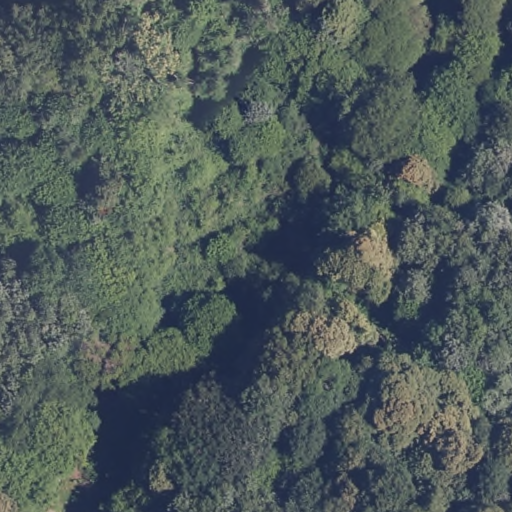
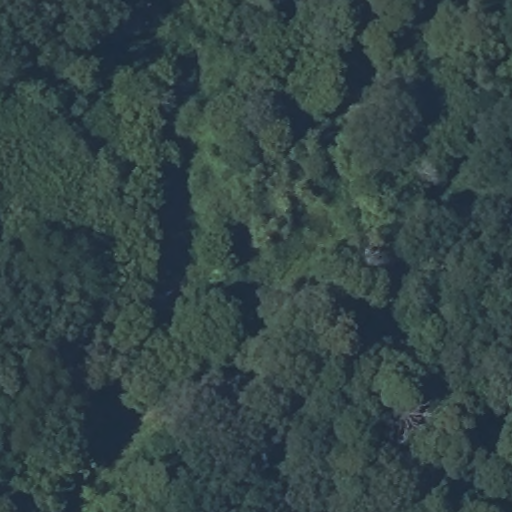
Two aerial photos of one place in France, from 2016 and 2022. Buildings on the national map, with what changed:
[]

